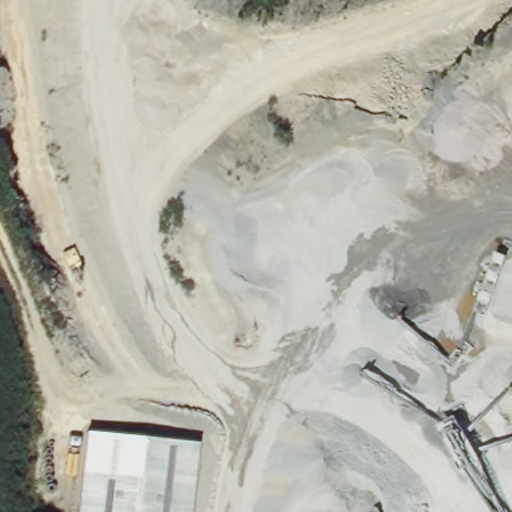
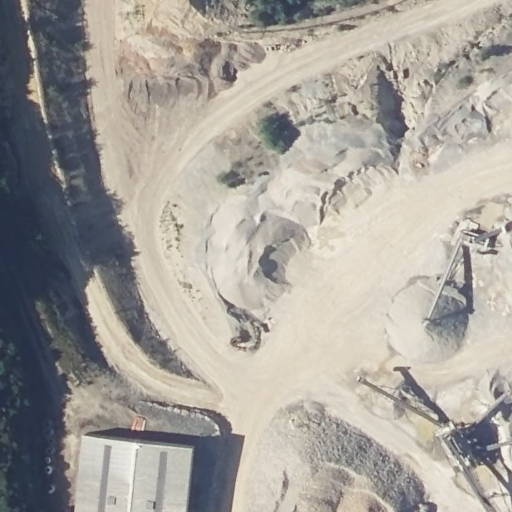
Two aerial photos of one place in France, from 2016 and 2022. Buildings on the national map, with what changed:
unchanged [(82,512),(86,467),(113,469),(126,471),(136,472),(141,472),(145,437),(200,442),(192,512),(82,512)]

